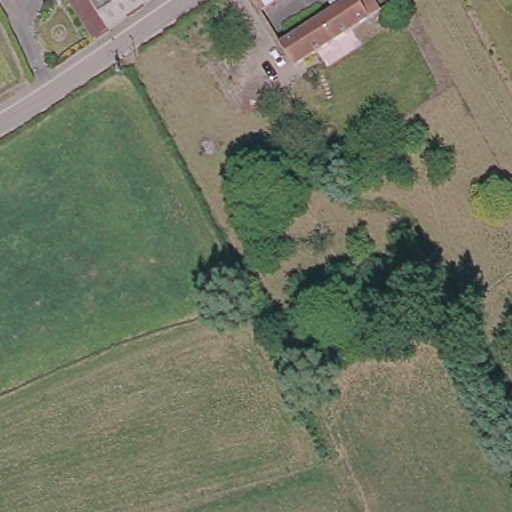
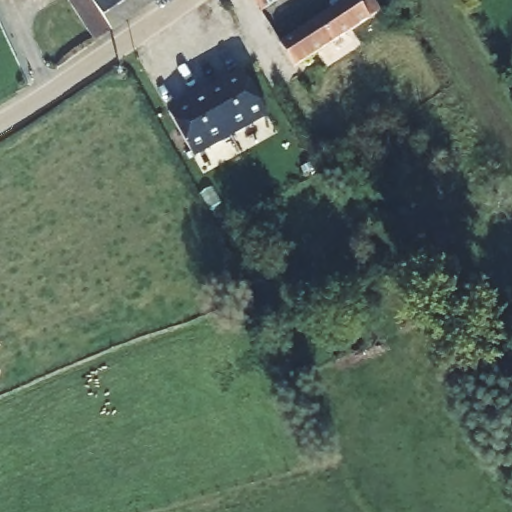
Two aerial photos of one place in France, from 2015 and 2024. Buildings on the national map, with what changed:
unchanged [(64,0),(93,0),(112,29),(94,41),(64,0)]
unchanged [(93,0),(154,0),(112,29),(93,0)]
unchanged [(250,0),(268,0),(255,8),(250,0)]
unchanged [(292,42),(355,0),(368,20),(305,61),(292,42)]
new [(170,108),(242,70),(268,118),(195,159),(170,108)]

